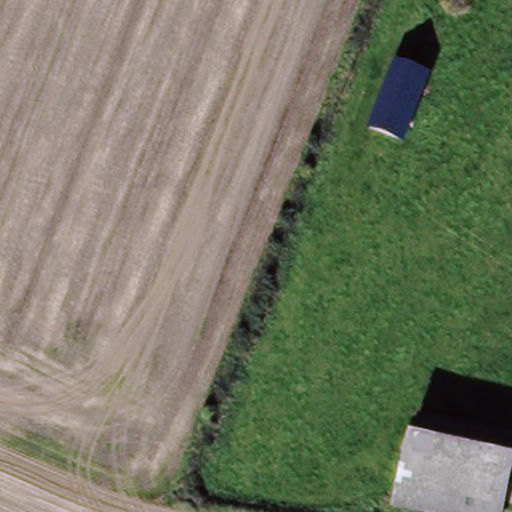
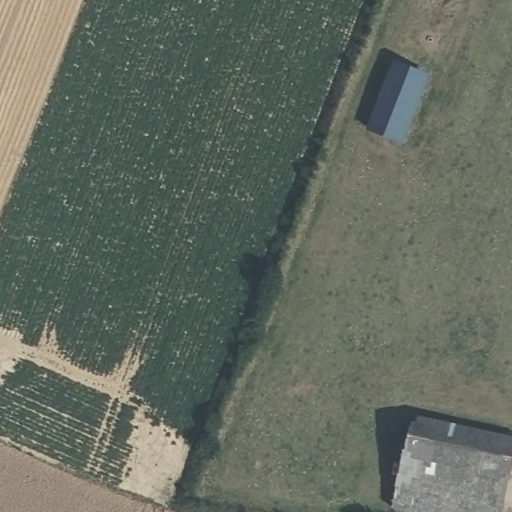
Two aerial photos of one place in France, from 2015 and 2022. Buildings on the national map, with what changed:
unchanged [(390,68),(422,80),(397,142),(366,130),(390,68)]
unchanged [(512,437),(512,476),(408,453),(421,416),(512,437)]
unchanged [(393,509),(408,453),(512,476),(512,479),(504,512),(408,512),(393,509)]

